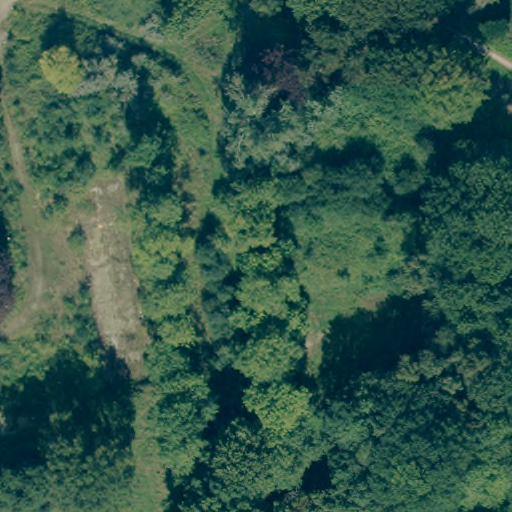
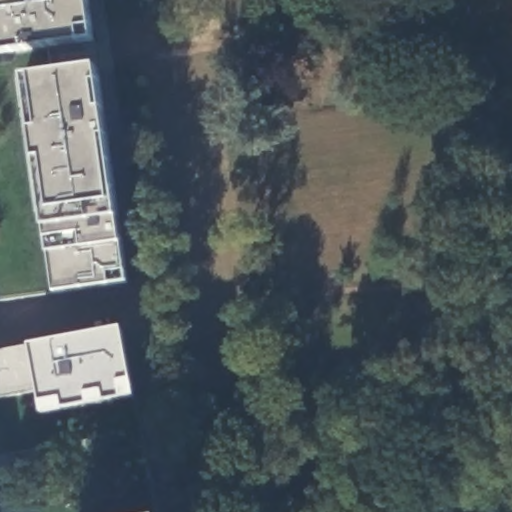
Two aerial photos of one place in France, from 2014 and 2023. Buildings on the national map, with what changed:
new [(50,49),(0,56),(0,0),(90,0),(96,42),(50,49)]
new [(50,49),(51,75),(25,79),(45,227),(50,256),(54,295),(0,301),(0,56),(50,49)]
new [(109,137),(125,245),(130,284),(54,295),(50,256),(45,227),(25,79),(51,75),(97,69),(109,137)]
demolished [(52,91),(114,81),(159,382),(0,408),(0,345),(89,331),(60,141),(52,91)]
new [(42,415),(38,391),(0,398),(0,351),(31,345),(125,328),(139,400),(42,415)]

